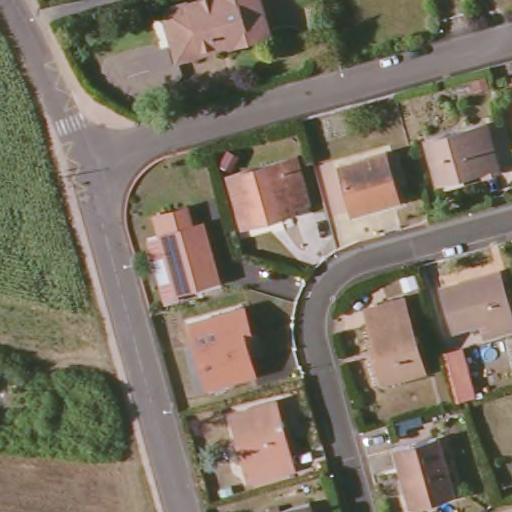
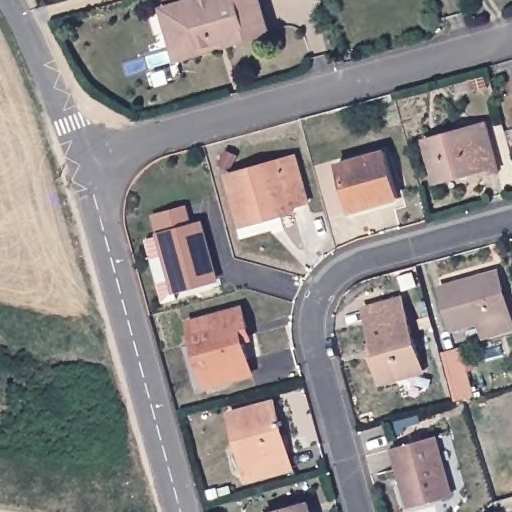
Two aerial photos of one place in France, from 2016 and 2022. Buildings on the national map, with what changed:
unchanged [(265,25),(266,31),(223,44),(221,36),(214,38),(216,45),(178,57),(174,44),(163,10),(196,0),(257,0),(265,25)]
unchanged [(512,79),(512,97),(508,80),(512,79)]
unchanged [(498,170),(484,174),(482,169),(438,181),(426,140),(486,124),(498,170)]
unchanged [(398,198),(352,210),(339,165),(385,152),(398,198)]
unchanged [(308,204),(294,208),(295,211),(243,225),(229,175),(294,157),(308,204)]
unchanged [(185,227),(196,224),(212,279),(170,290),(150,217),(179,209),(185,227)]
unchanged [(512,327),(484,335),(480,320),(454,328),(443,287),(498,271),(512,323),(512,327)]
unchanged [(423,370),(383,382),(374,355),(379,354),(378,350),(370,323),(374,322),(369,308),(403,298),(423,370)]
unchanged [(248,327),(241,330),(253,372),(208,385),(189,323),(243,308),(248,327)]
unchanged [(282,430),(279,432),(286,455),(289,453),(292,467),(249,479),(231,414),(274,402),(282,430)]
unchanged [(452,494),(411,506),(394,447),(436,435),(452,494)]
unchanged [(272,512),(309,501),(312,512),(272,512)]

